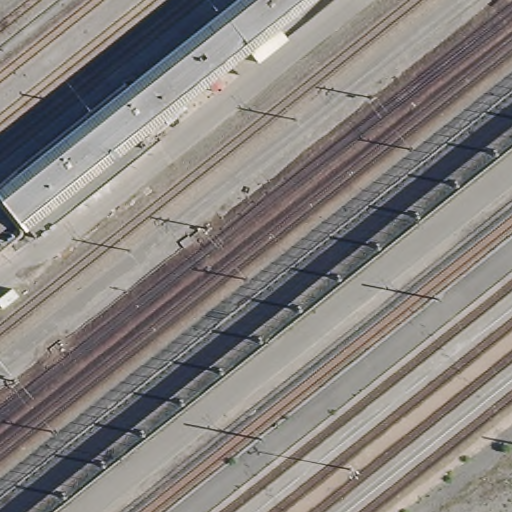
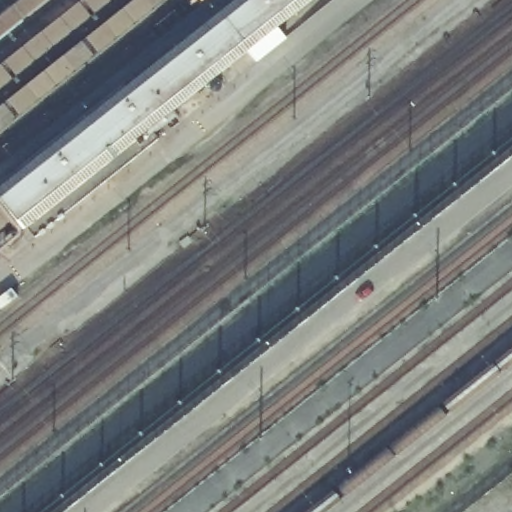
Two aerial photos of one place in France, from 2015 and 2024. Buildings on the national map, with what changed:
unchanged [(249,50),(257,61),(239,75),(231,64),(151,128),(160,139),(35,238),(26,227),(23,229),(0,200),(0,187),(236,0),(312,0),(249,50)]

